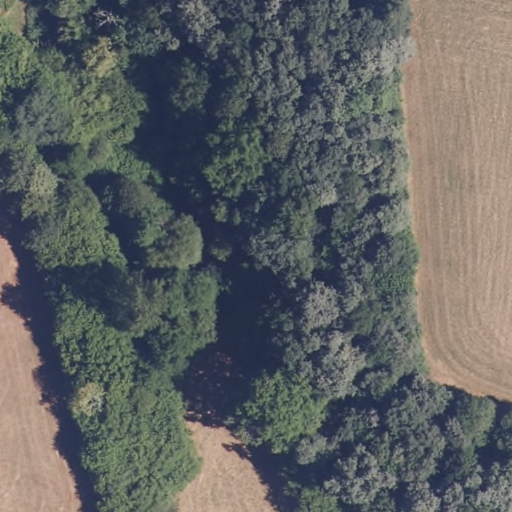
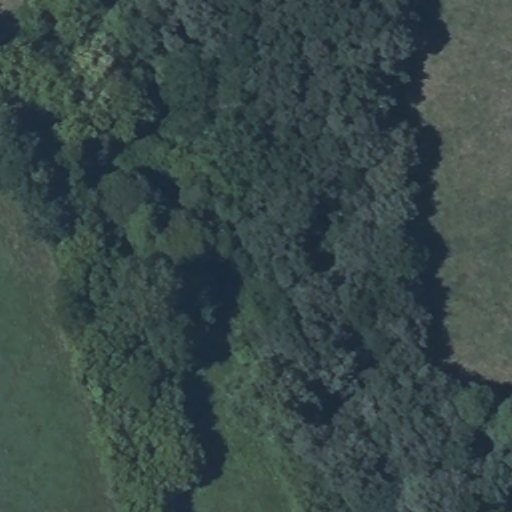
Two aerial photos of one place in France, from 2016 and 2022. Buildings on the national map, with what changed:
[]

